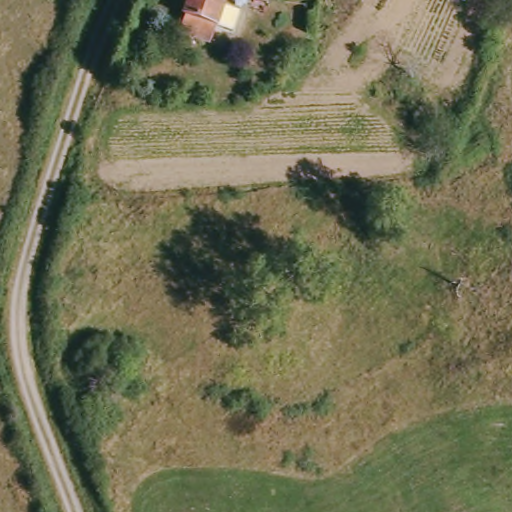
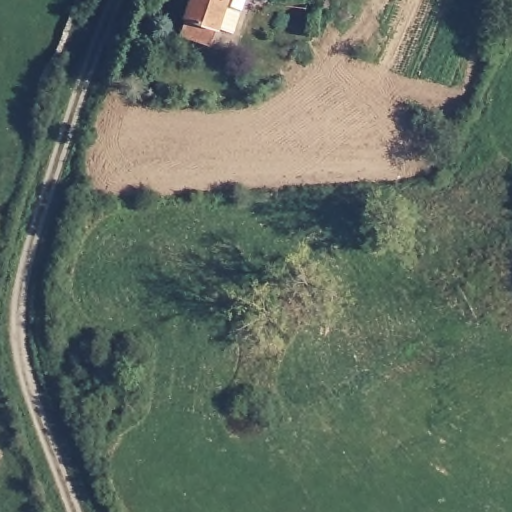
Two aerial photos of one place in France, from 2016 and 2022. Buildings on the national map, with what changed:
unchanged [(220,0),(235,2),(229,27),(214,25),(210,40),(180,32),(187,0),(220,0)]

